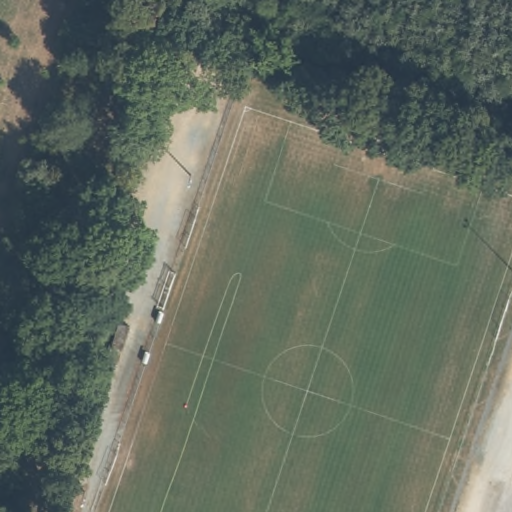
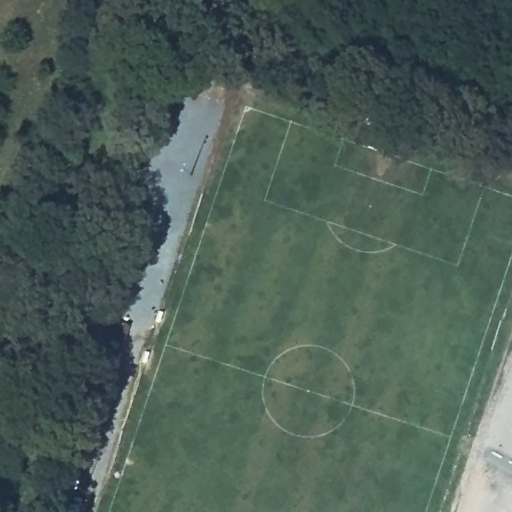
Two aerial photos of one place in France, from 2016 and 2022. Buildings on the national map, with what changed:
unchanged [(95,405),(100,389),(89,385),(97,364),(109,367),(123,330),(135,333),(121,372),(107,411),(95,405)]

